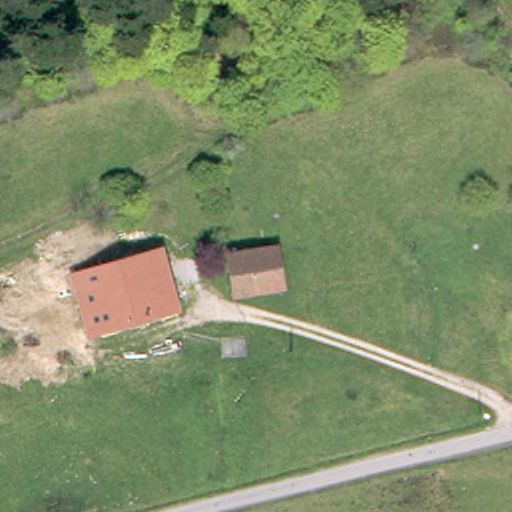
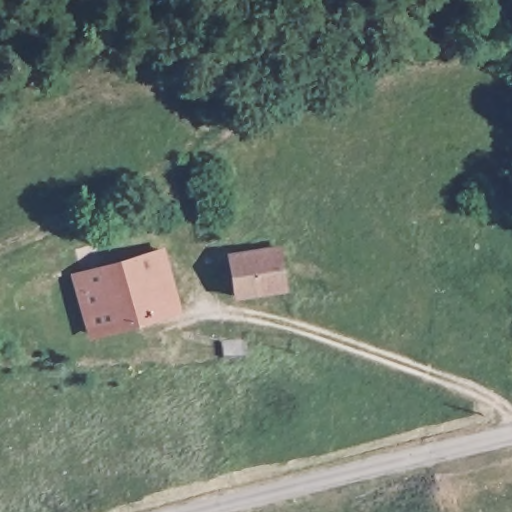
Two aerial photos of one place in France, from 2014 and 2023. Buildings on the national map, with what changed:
unchanged [(287,287),(236,296),(230,253),(280,247),(287,287)]
unchanged [(76,274),(164,252),(180,312),(140,321),(143,331),(131,334),(129,325),(92,333),(76,274)]

